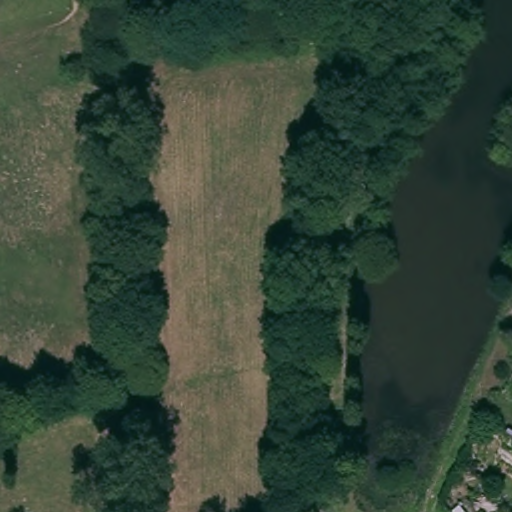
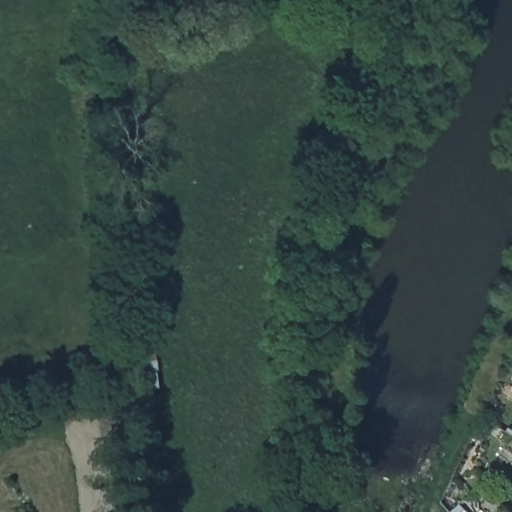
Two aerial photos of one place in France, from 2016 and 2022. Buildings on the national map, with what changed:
unchanged [(469,512),(460,512),(465,508),(469,512)]

